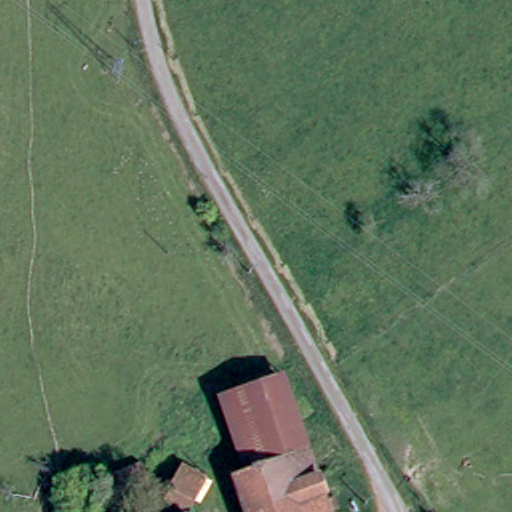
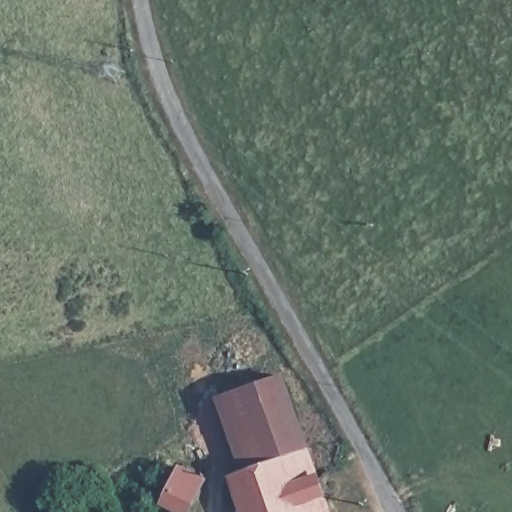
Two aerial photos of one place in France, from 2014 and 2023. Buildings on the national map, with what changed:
unchanged [(259,460),(234,388),(282,372),(307,444),(259,460)]
unchanged [(230,472),(259,460),(307,444),(331,512),(245,512),(230,472)]
unchanged [(205,475),(190,510),(164,498),(166,493),(155,486),(162,477),(172,480),(181,462),(205,475)]
unchanged [(107,501),(99,484),(140,465),(148,482),(107,501)]

